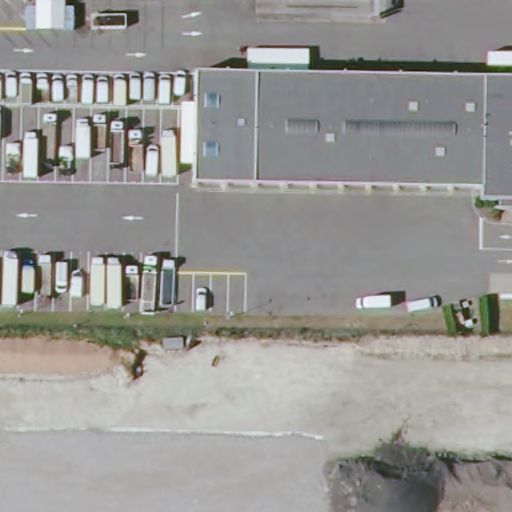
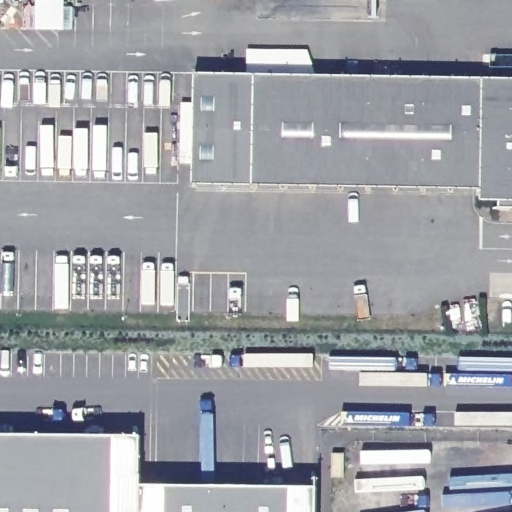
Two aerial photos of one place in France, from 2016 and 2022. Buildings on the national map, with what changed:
unchanged [(512,80),(512,204),(483,204),(482,191),(196,186),(197,75),(512,80)]
new [(141,486),(316,487),(315,512),(0,512),(0,434),(140,436),(141,486)]

